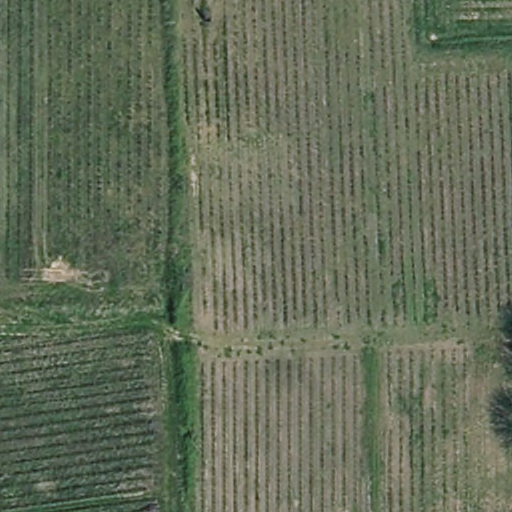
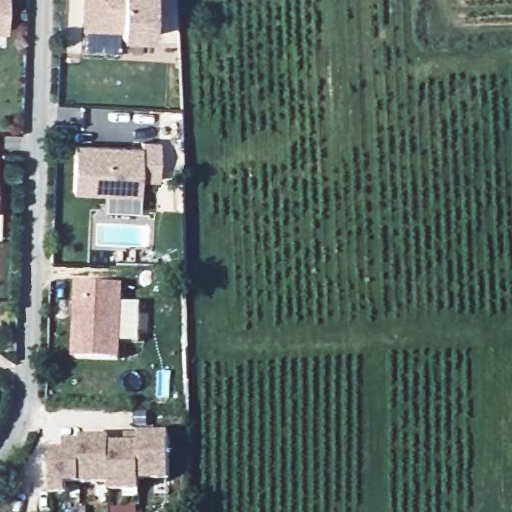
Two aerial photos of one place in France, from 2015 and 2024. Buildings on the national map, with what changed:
unchanged [(11,0),(10,35),(0,34),(0,0),(11,0)]
new [(158,0),(155,42),(125,40),(125,32),(87,31),(89,0),(158,0)]
new [(75,145),(140,147),(140,141),(157,142),(156,182),(138,181),(138,194),(72,194),(75,145)]
new [(75,285),(122,287),(117,361),(72,358),(75,285)]
new [(168,482),(138,484),(139,493),(110,492),(111,485),(64,486),(65,496),(50,497),(51,453),(65,453),(65,442),(80,442),(80,438),(108,438),(109,445),(127,445),(127,435),(138,435),(169,435),(168,482)]

